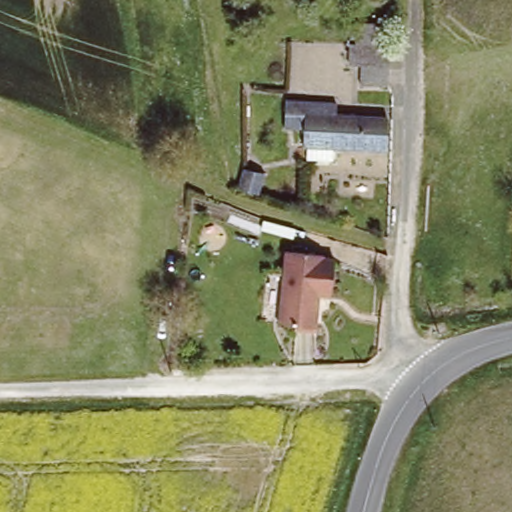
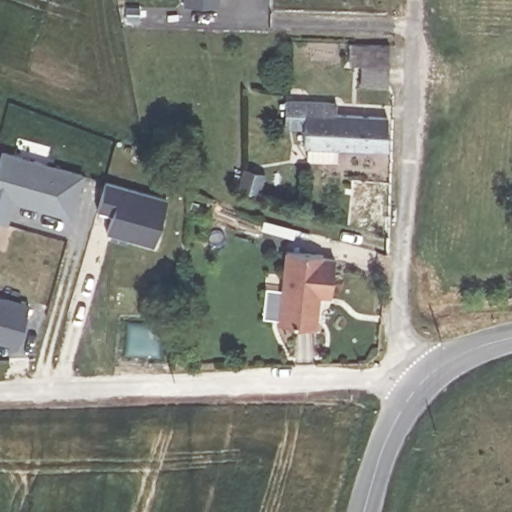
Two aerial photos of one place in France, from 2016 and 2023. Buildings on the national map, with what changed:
new [(219,8),(181,5),(181,0),(219,0),(219,8)]
unchanged [(360,83),(361,64),(349,64),(349,43),(389,44),(388,84),(360,83)]
unchanged [(306,157),(307,146),(303,146),(304,127),(284,127),(286,99),(336,102),(336,113),(388,115),(386,149),(333,147),(333,159),(306,157)]
new [(69,218),(13,202),(6,223),(0,222),(0,150),(83,172),(69,218)]
unchanged [(238,189),(243,167),(263,172),(258,194),(238,189)]
new [(104,180),(166,198),(153,246),(103,232),(109,213),(95,210),(104,180)]
unchanged [(278,318),(286,245),(323,249),(322,252),(334,253),(330,290),(319,289),(316,322),(278,318)]
new [(16,347),(0,343),(0,296),(28,304),(16,347)]

